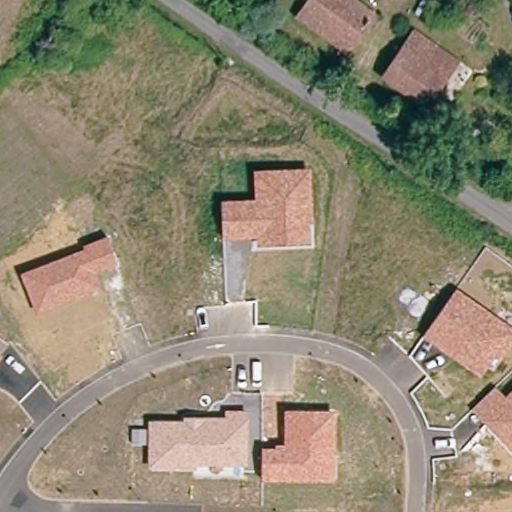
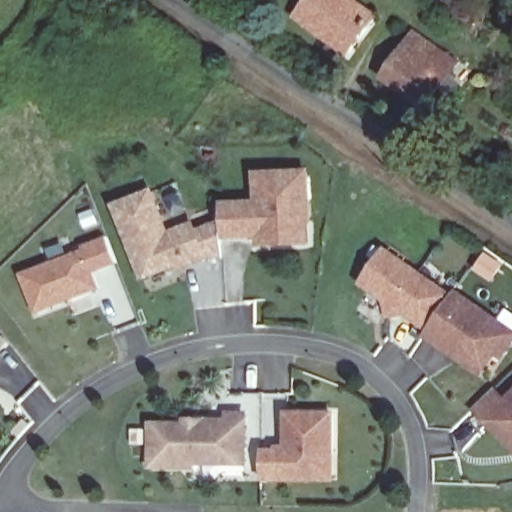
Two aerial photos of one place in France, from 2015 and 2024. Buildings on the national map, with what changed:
unchanged [(315,0),(338,0),(372,23),(348,60),(325,45),(298,23),(315,0)]
demolished [(80,1),(121,30),(88,83),(43,52),(80,1)]
unchanged [(417,33),(437,49),(453,61),(427,99),(404,83),(392,99),(377,87),(417,33)]
unchanged [(223,241),(220,202),(254,200),(253,172),(311,168),(313,224),(309,224),(310,245),(257,247),(256,238),(223,241)]
new [(203,259),(177,271),(176,267),(142,281),(112,205),(153,187),(170,230),(196,221),(198,228),(221,219),(223,241),(223,257),(203,259)]
unchanged [(21,274),(84,250),(82,246),(106,236),(116,265),(96,273),(101,289),(36,315),(21,274)]
new [(407,316),(387,317),(381,298),(359,285),(385,246),(453,294),(427,331),(407,316)]
unchanged [(456,290),(512,329),(512,345),(503,359),(496,353),(480,379),(422,338),(456,290)]
unchanged [(3,357),(0,361),(0,355),(3,357)]
unchanged [(512,453),(471,411),(495,387),(505,396),(512,390),(512,453)]
unchanged [(246,467),(195,467),(195,472),(147,470),(148,421),(182,421),(182,418),(224,417),(224,410),(247,412),(246,467)]
unchanged [(283,411),(335,412),(334,483),(262,482),(262,449),(274,449),(274,445),(283,445),(283,411)]

